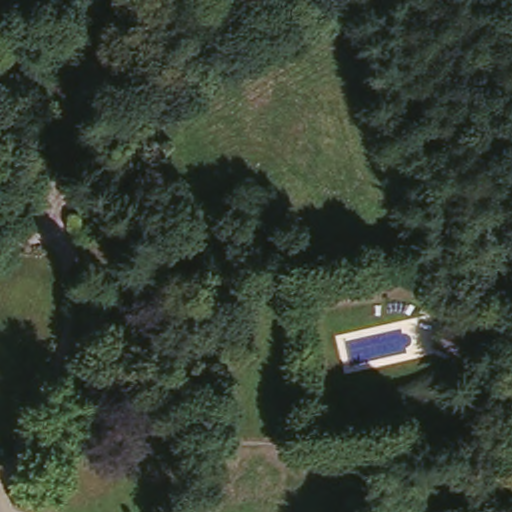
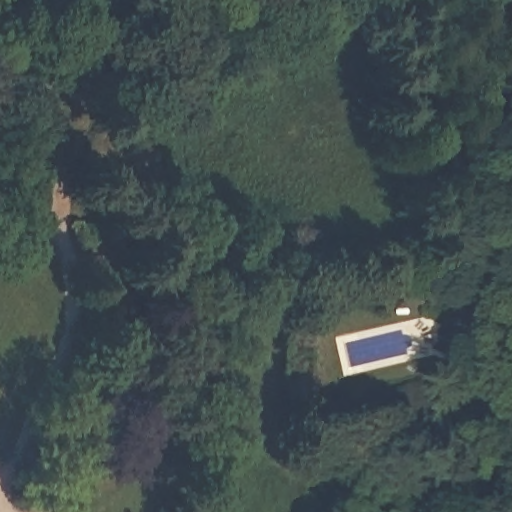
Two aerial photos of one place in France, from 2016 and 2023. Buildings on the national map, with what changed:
unchanged [(444,321),(469,331),(460,352),(436,341),(444,321)]

